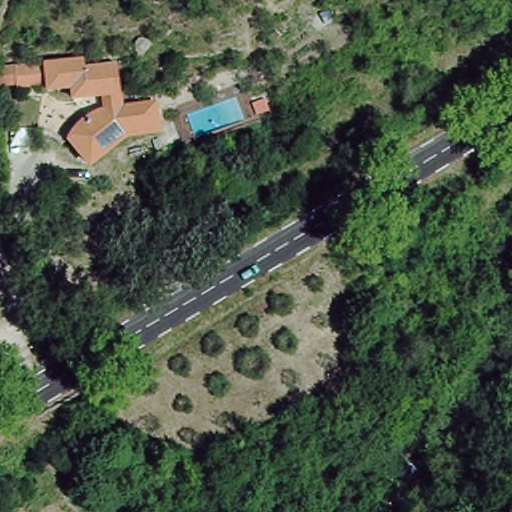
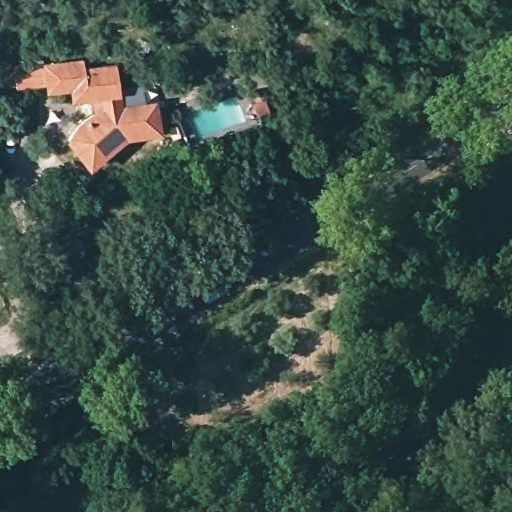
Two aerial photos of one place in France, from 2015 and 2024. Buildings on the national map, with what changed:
unchanged [(83,57),(85,65),(118,63),(129,102),(156,100),(160,126),(127,130),(92,161),(73,139),(77,125),(100,105),(108,105),(104,90),(73,92),(73,84),(48,87),(46,80),(18,86),(14,69),(83,57)]

